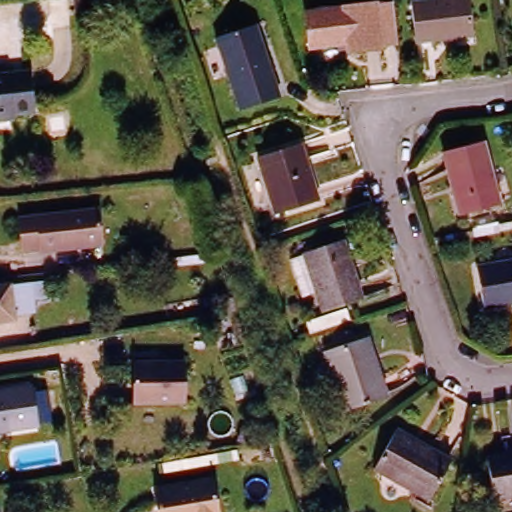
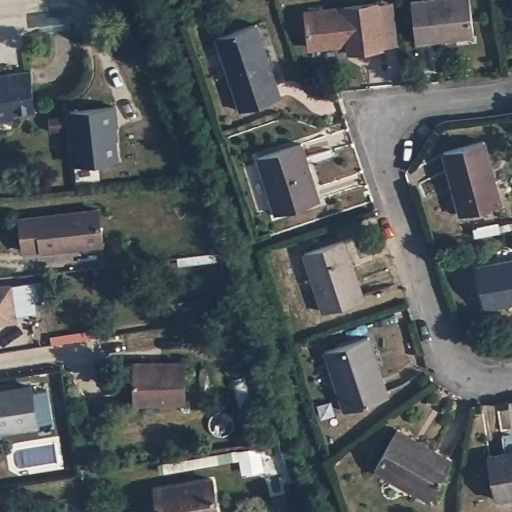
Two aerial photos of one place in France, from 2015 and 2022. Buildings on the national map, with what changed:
unchanged [(411,1),(419,0),(470,0),(474,37),(416,43),(411,1)]
unchanged [(345,43),(306,47),(301,12),(371,4),(389,2),(394,45),(376,48),(346,52),(345,43)]
unchanged [(279,95),(240,108),(216,34),(256,21),(279,95)]
unchanged [(31,109),(9,111),(9,116),(0,117),(0,70),(26,67),(31,109)]
new [(117,108),(119,128),(115,128),(118,161),(76,165),(71,113),(117,108)]
unchanged [(458,215),(442,151),(481,141),(498,205),(458,215)]
unchanged [(320,206),(277,219),(258,160),(303,147),(320,206)]
unchanged [(37,249),(36,246),(19,248),(15,217),(93,208),(98,241),(37,249)]
unchanged [(323,316),(304,257),(344,243),(364,303),(323,316)]
unchanged [(474,263),(512,255),(512,301),(483,307),(474,263)]
unchanged [(6,284),(27,282),(47,280),(49,295),(29,298),(30,310),(10,312),(10,317),(0,318),(0,285),(6,284)]
unchanged [(344,413),(323,352),(366,338),(386,398),(344,413)]
unchanged [(135,403),(134,362),(184,361),(184,402),(135,403)]
unchanged [(0,430),(0,390),(24,386),(31,424),(0,430)]
unchanged [(431,502),(376,471),(399,429),(454,461),(431,502)]
unchanged [(487,454),(512,450),(512,493),(494,496),(487,454)]
unchanged [(209,474),(217,512),(155,512),(151,485),(209,474)]

